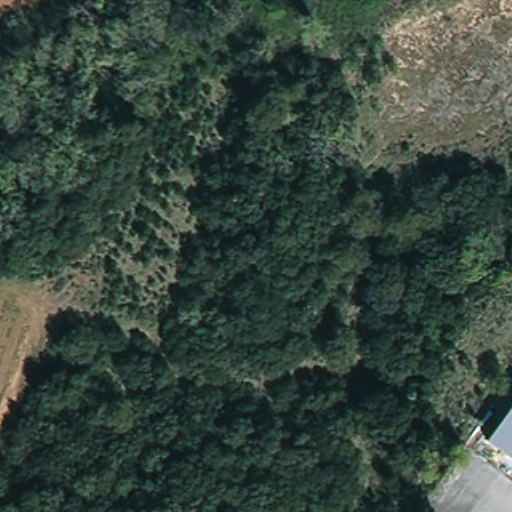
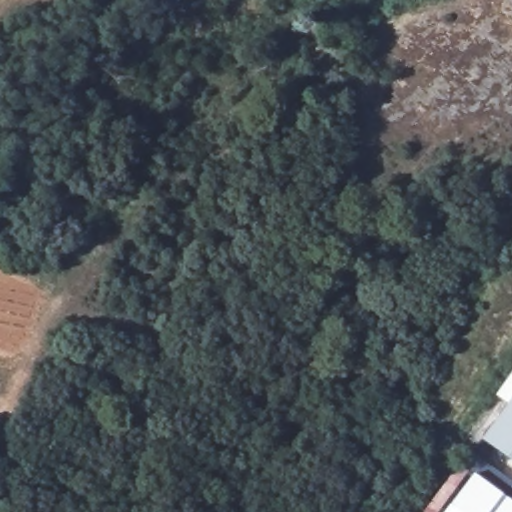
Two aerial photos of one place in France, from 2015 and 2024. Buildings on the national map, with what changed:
unchanged [(512,407),(512,461),(486,442),(512,407)]
new [(512,500),(512,512),(449,512),(477,474),(512,500)]

